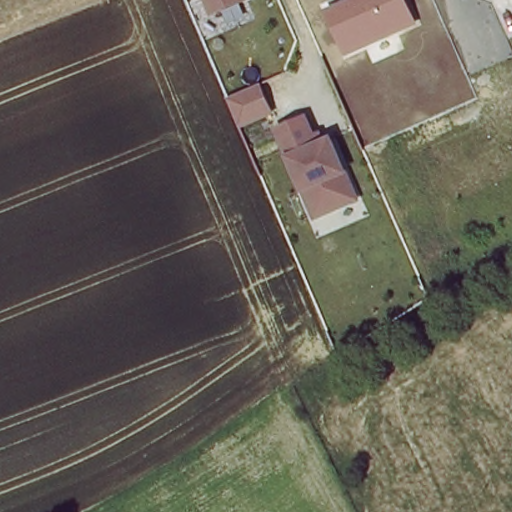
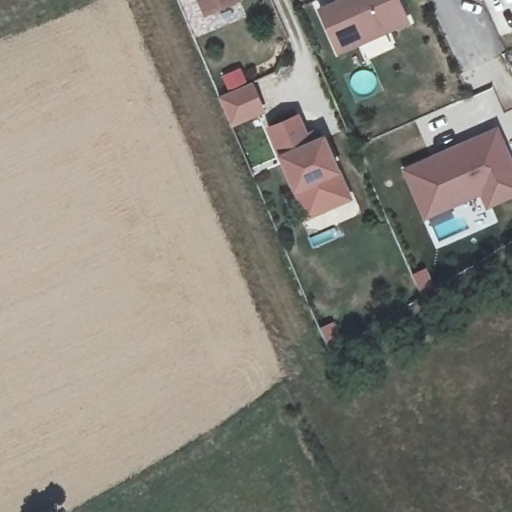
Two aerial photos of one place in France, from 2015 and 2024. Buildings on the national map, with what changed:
unchanged [(194,0),(229,0),(198,10),(194,0)]
unchanged [(400,0),(411,23),(339,56),(317,10),(339,0),(400,0)]
unchanged [(267,113),(231,128),(218,96),(253,81),(267,113)]
unchanged [(289,186),(266,125),(294,115),(301,134),(295,136),(299,145),(319,138),(342,199),(318,208),(301,214),(289,186)]
new [(498,125),(512,157),(512,198),(487,210),(479,194),(424,219),(402,169),(498,125)]

